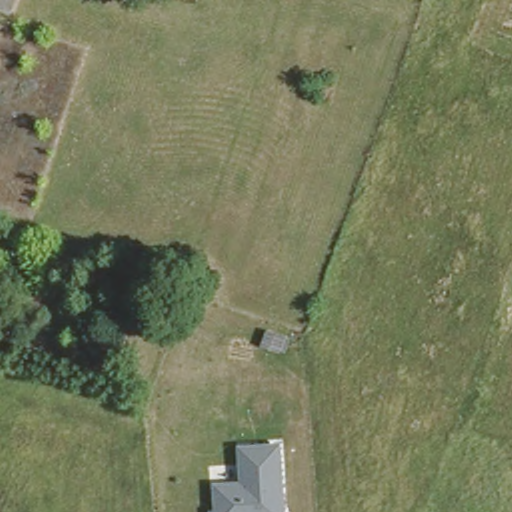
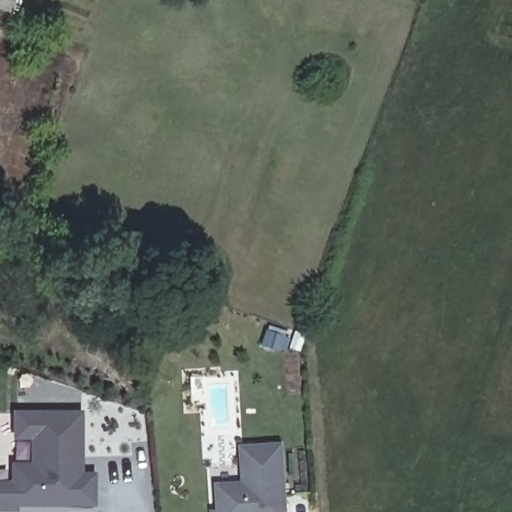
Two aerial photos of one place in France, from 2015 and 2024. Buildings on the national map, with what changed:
unchanged [(0,8),(0,0),(19,0),(14,13),(0,8)]
new [(18,505),(18,510),(0,510),(0,480),(11,480),(12,462),(30,462),(30,439),(13,439),(13,409),(84,410),(84,473),(96,473),(96,504),(18,505)]
unchanged [(287,512),(211,512),(210,509),(216,507),(215,482),(240,480),(238,446),(282,443),(287,512)]

